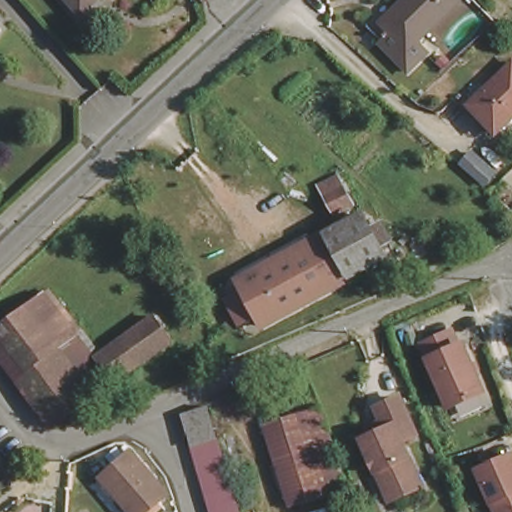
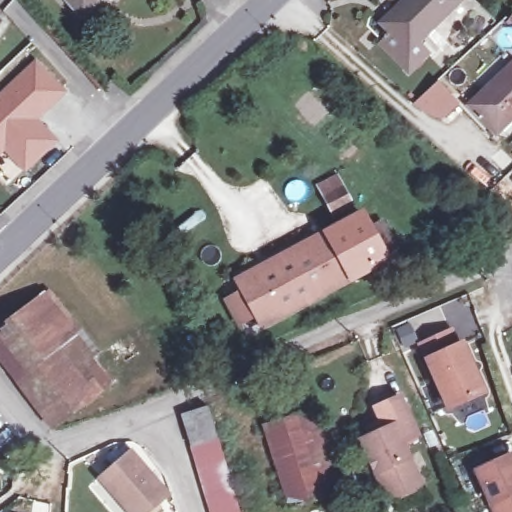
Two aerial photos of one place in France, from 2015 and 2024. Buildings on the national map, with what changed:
unchanged [(68,0),(104,0),(85,18),(68,0)]
unchanged [(380,26),(407,0),(459,0),(461,1),(418,41),(431,55),(421,65),(409,77),(377,46),(390,35),(380,26)]
new [(67,92),(40,118),(60,142),(23,173),(4,152),(0,155),(0,90),(35,57),(67,92)]
unchanged [(494,138),(470,110),(512,69),(512,120),(494,138)]
unchanged [(335,217),(322,196),(341,186),(352,206),(335,217)]
unchanged [(238,307),(250,301),(241,285),(342,228),(366,215),(390,259),(262,325),(250,332),(238,307)]
unchanged [(172,347),(43,427),(0,364),(0,327),(58,289),(94,345),(98,351),(110,344),(152,318),(172,347)]
unchanged [(465,346),(486,394),(451,409),(425,346),(455,333),(461,348),(465,346)]
unchanged [(212,396),(245,512),(215,512),(186,408),(212,396)]
unchanged [(381,475),(368,442),(377,438),(375,431),(390,425),(384,410),(408,401),(423,440),(407,446),(425,491),(398,502),(392,504),(381,475)]
unchanged [(326,416),(348,499),(291,507),(266,429),(326,416)]
unchanged [(139,512),(105,477),(135,451),(172,493),(151,512),(139,512)]
unchanged [(496,512),(479,473),(512,459),(512,512),(496,512)]

